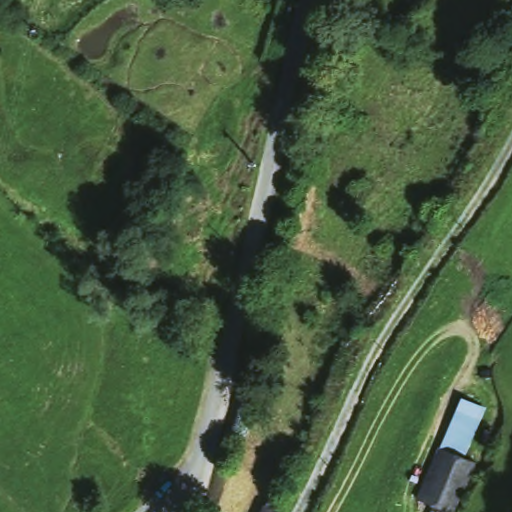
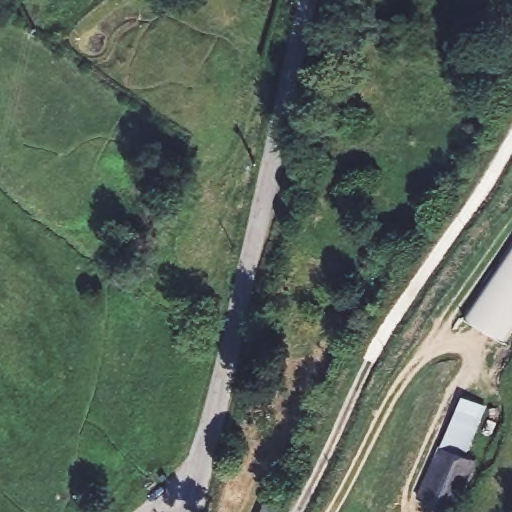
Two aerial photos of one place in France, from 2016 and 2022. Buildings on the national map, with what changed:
new [(512,329),(502,345),(465,321),(512,250),(512,329)]
unchanged [(461,396),(487,406),(467,460),(475,463),(453,512),(429,512),(433,501),(418,494),(461,396)]

